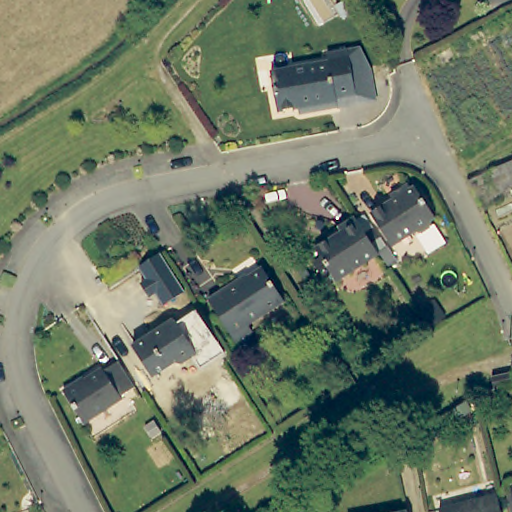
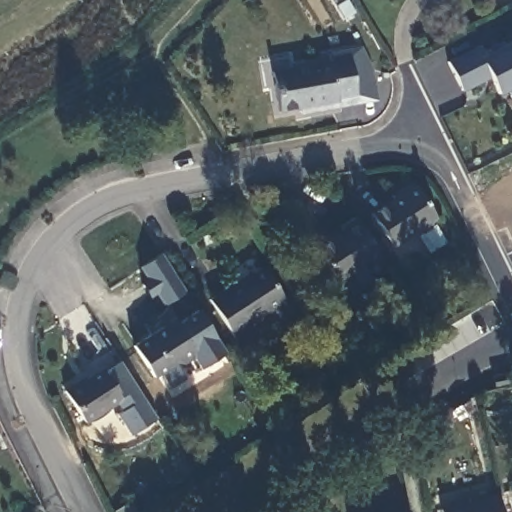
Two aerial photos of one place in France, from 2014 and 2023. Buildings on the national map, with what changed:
new [(477,46),(483,56),(512,42),(512,99),(508,91),(499,95),(490,77),(461,91),(447,62),(477,46)]
unchanged [(354,96),(334,100),(335,105),(302,111),(294,107),(277,110),(269,71),(327,60),(325,54),(344,50),(354,96)]
unchanged [(414,186),(418,183),(439,215),(435,219),(433,225),(425,230),(419,229),(395,245),(374,212),(388,203),(389,205),(397,200),(394,194),(412,182),(414,186)]
unchanged [(382,255),(340,283),(319,250),(345,234),(342,229),(358,219),(382,255)]
unchanged [(157,295),(150,299),(141,285),(149,281),(140,266),(160,255),(185,293),(164,308),(157,295)]
unchanged [(286,301),(249,325),(253,330),(237,341),(210,299),(240,280),(242,282),(265,268),(286,301)]
unchanged [(197,311),(226,355),(203,370),(195,355),(199,353),(179,323),(197,311)]
unchanged [(199,353),(183,363),(176,362),(154,377),(132,345),(163,324),(166,328),(177,321),(199,353)]
unchanged [(135,385),(121,395),(123,397),(85,422),(63,390),(79,379),(80,381),(103,367),(105,370),(119,360),(135,385)]
unchanged [(512,383),(494,387),(492,374),(509,371),(512,383)]
unchanged [(500,512),(439,512),(439,510),(496,495),(500,512)]
unchanged [(405,509),(405,512),(388,512),(405,509)]

